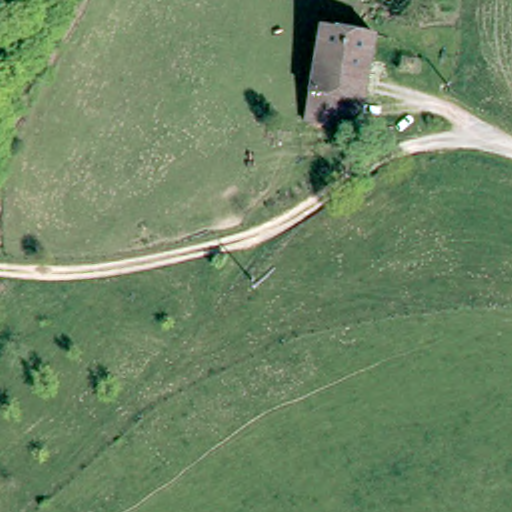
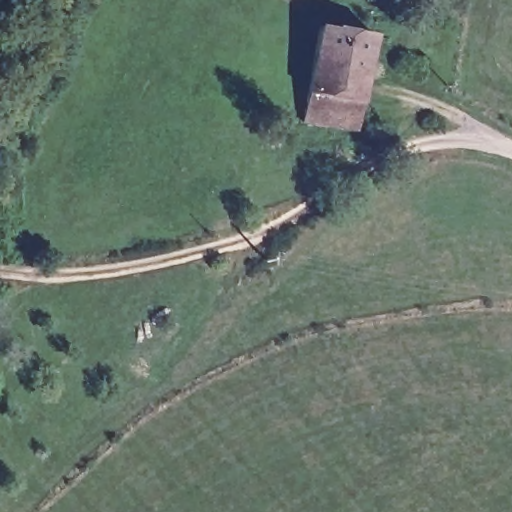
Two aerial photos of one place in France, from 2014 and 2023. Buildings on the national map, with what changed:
unchanged [(304,118),(309,91),(308,91),(320,21),(374,32),(357,129),(304,118)]

